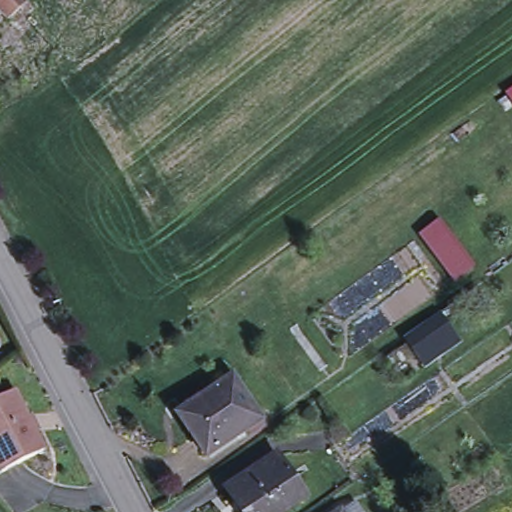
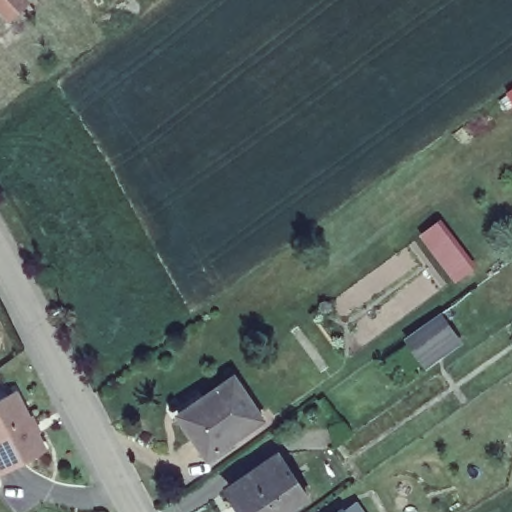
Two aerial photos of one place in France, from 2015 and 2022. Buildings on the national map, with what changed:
unchanged [(8,18),(0,10),(0,0),(25,0),(26,2),(8,18)]
unchanged [(446,232),(467,261),(450,273),(430,244),(446,232)]
unchanged [(468,334),(435,359),(417,334),(451,310),(468,334)]
unchanged [(232,375),(262,419),(207,457),(177,414),(232,375)]
unchanged [(48,443),(10,463),(5,451),(0,451),(0,396),(20,386),(48,443)]
unchanged [(10,463),(0,468),(0,451),(5,451),(10,463)]
unchanged [(307,496),(284,512),(245,512),(229,489),(278,455),(307,496)]

